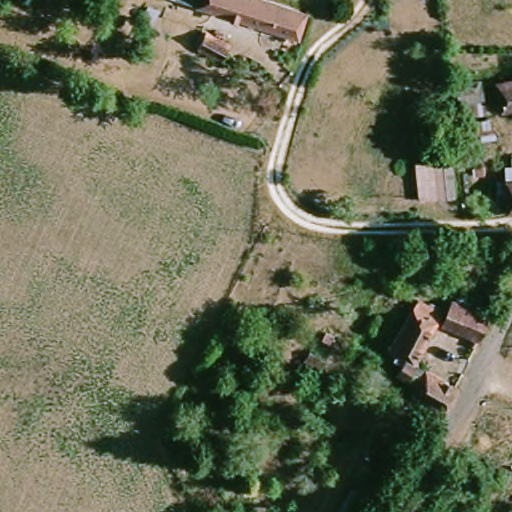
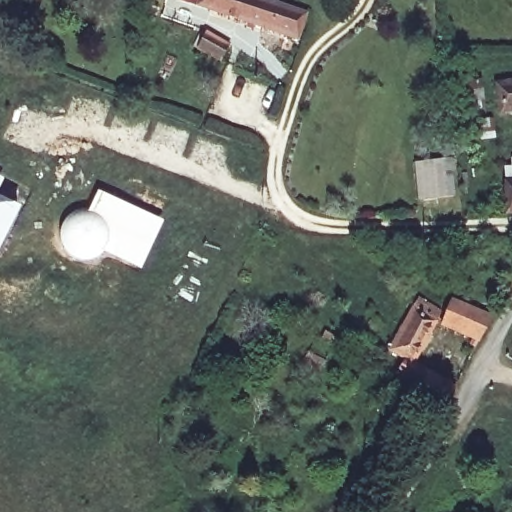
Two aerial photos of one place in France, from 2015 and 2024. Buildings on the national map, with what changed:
unchanged [(177,0),(202,0),(199,7),(177,0)]
unchanged [(269,0),(307,15),(297,41),(199,7),(202,0),(269,0)]
unchanged [(220,57),(189,41),(197,25),(229,40),(220,57)]
unchanged [(500,111),(499,81),(512,80),(512,110),(500,111)]
unchanged [(452,194),(435,195),(432,157),(448,156),(452,194)]
new [(0,185),(0,176),(4,177),(0,185)]
unchanged [(505,214),(504,182),(512,182),(512,213),(505,214)]
new [(64,219),(74,212),(85,210),(96,189),(164,220),(140,270),(103,255),(94,261),(82,262),(70,256),(59,244),(59,232),(64,219)]
new [(0,246),(0,197),(20,208),(0,246)]
unchanged [(497,321),(486,342),(440,321),(450,300),(497,321)]
unchanged [(412,360),(406,357),(392,350),(412,310),(433,320),(412,360)]
unchanged [(392,385),(406,357),(412,360),(464,387),(451,414),(392,385)]

